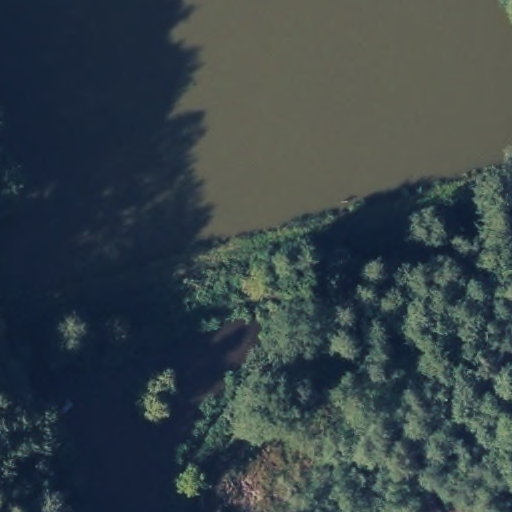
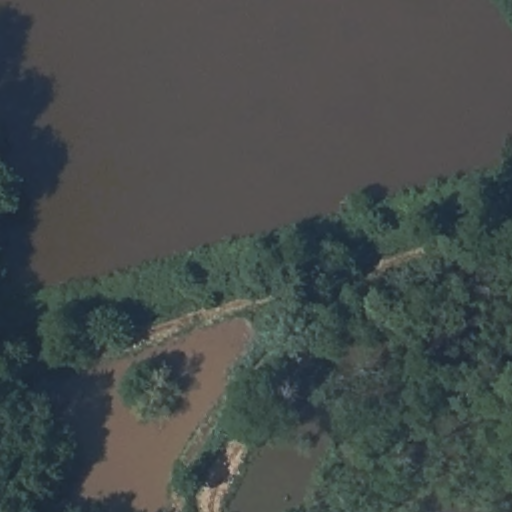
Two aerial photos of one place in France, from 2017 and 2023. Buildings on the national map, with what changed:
unchanged [(67,403),(70,399),(81,411),(65,426),(59,420),(54,415),(42,399),(52,388),(67,403)]

